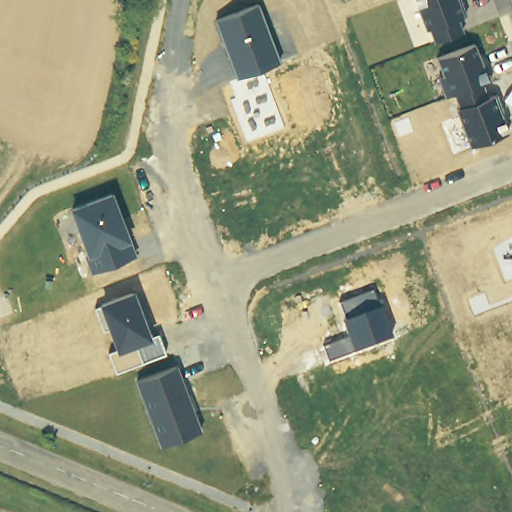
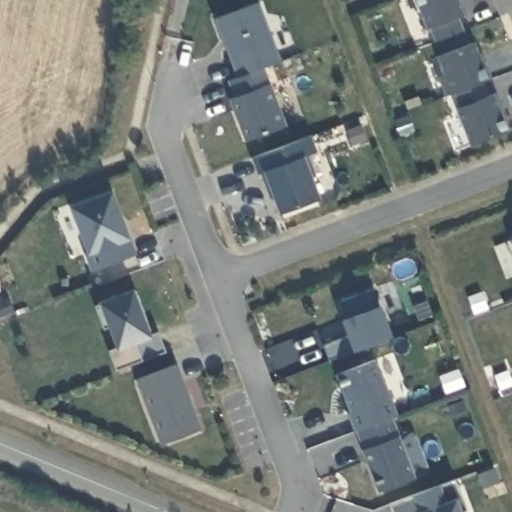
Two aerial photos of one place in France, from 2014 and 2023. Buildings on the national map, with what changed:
unchanged [(458,18),(464,31),(435,42),(429,28),(425,29),(415,0),(458,0),(463,15),(458,18)]
unchanged [(217,20),(258,4),(278,61),(260,68),(237,76),(217,20)]
unchanged [(474,43),(488,80),(483,81),(490,98),(495,95),(509,131),(469,146),(455,108),(460,107),(454,94),(444,96),(438,79),(444,77),(436,58),(474,43)]
unchanged [(260,68),(284,129),(246,141),(230,99),(236,96),(229,80),(237,76),(260,68)]
new [(263,172),(256,173),(250,158),(310,135),(316,151),(308,155),(315,175),(312,175),(320,199),(279,214),(263,172)]
unchanged [(112,192),(131,241),(136,255),(92,273),(85,255),(89,254),(71,208),(112,192)]
unchanged [(512,240),(512,242),(511,240),(512,240)]
unchanged [(95,306),(100,302),(133,289),(150,337),(158,333),(165,353),(115,372),(108,352),(117,349),(109,329),(104,329),(95,306)]
unchanged [(348,337),(342,320),(347,320),(339,301),(373,291),(381,308),(391,338),(352,352),(328,360),(324,346),(348,337)]
new [(389,398),(390,398),(397,416),(391,419),(414,478),(377,492),(347,414),(351,413),(336,375),(375,359),(389,398)]
unchanged [(176,366),(201,431),(160,446),(137,382),(176,366)]
new [(455,479),(466,509),(463,512),(392,512),(389,504),(455,479)]

